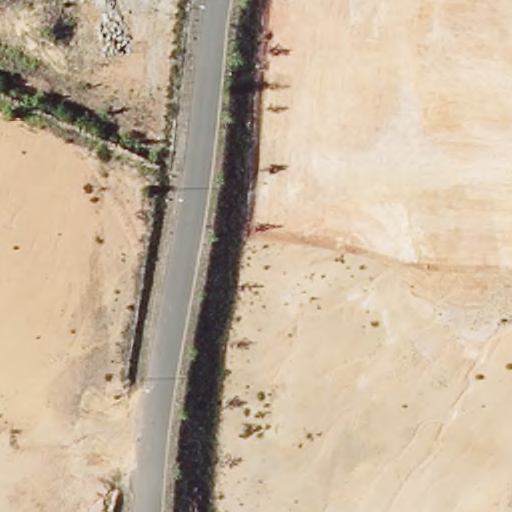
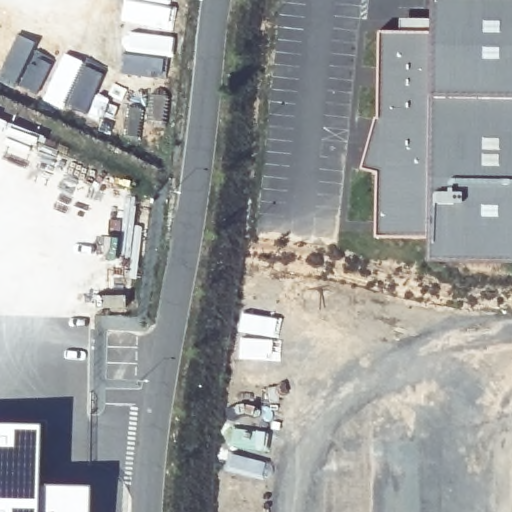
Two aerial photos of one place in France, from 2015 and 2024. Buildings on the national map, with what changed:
new [(361,169),(376,117),(378,33),(401,33),(401,22),(431,23),(432,0),(512,0),(512,259),(429,257),(430,236),(377,237),(377,174),(361,169)]
new [(90,486),(90,512),(0,512),(0,425),(42,426),(40,485),(90,486)]

